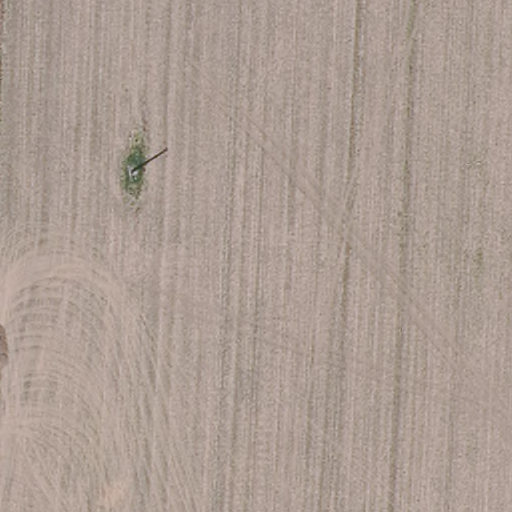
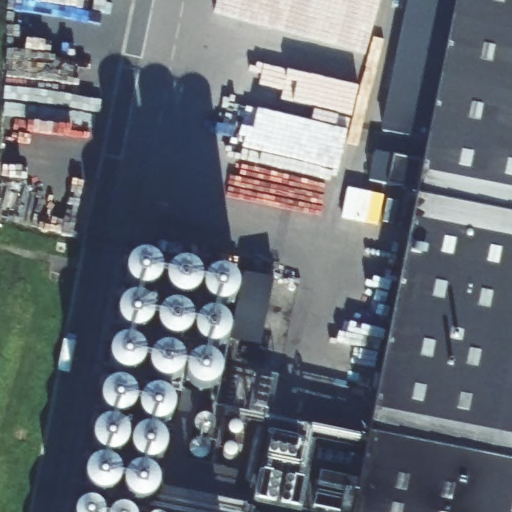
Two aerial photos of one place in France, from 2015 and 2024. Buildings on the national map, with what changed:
new [(512,512),(342,512),(355,447),(409,205),(399,202),(410,145),(422,147),(454,0),(512,0),(512,512)]
new [(423,141),(379,133),(407,0),(454,0),(423,141)]
new [(264,428),(355,447),(342,512),(310,512),(250,500),(264,428)]
new [(180,487),(185,460),(238,469),(232,497),(180,487)]

